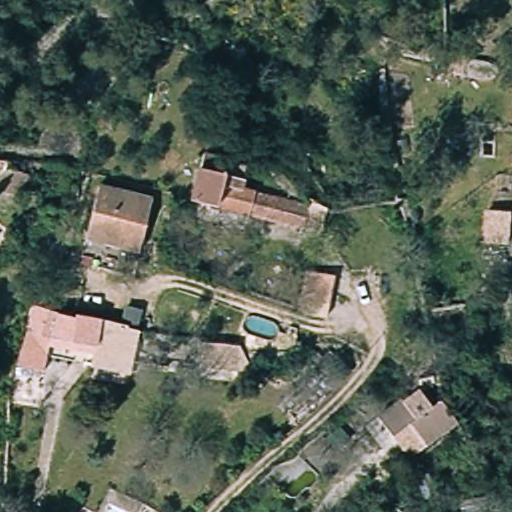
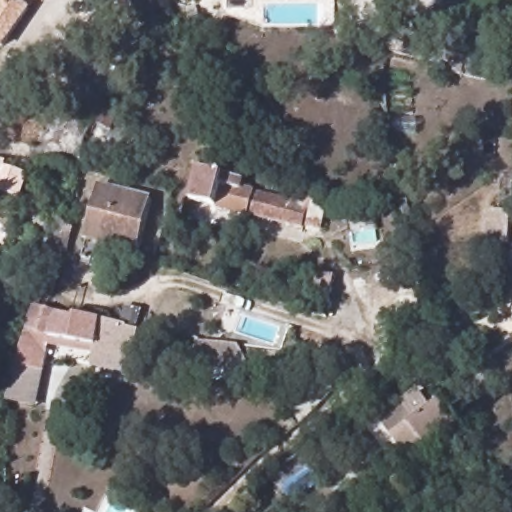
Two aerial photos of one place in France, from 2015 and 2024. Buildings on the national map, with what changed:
new [(3,48),(0,46),(0,0),(24,0),(33,8),(3,48)]
unchanged [(309,198),(317,205),(325,212),(320,233),(191,198),(203,150),(218,154),(217,159),(230,162),(228,172),(236,174),(233,183),(301,201),(303,191),(309,198)]
unchanged [(1,164),(23,172),(16,195),(0,189),(0,158),(2,158),(1,164)]
unchanged [(93,184),(147,198),(133,254),(80,241),(93,184)]
unchanged [(74,225),(70,237),(56,264),(50,278),(40,270),(54,246),(43,238),(68,214),(74,225)]
unchanged [(306,276),(332,282),(327,310),(301,305),(306,276)]
unchanged [(125,377),(87,366),(93,346),(50,334),(44,354),(21,348),(34,303),(75,316),(77,312),(139,328),(125,377)]
unchanged [(221,345),(243,345),(240,370),(198,367),(201,342),(221,345)]
unchanged [(461,422),(414,461),(398,441),(378,418),(418,385),(436,406),(443,401),(461,422)]
unchanged [(421,480),(433,474),(446,499),(433,504),(421,480)]
unchanged [(466,506),(491,501),(494,512),(467,512),(466,506)]

